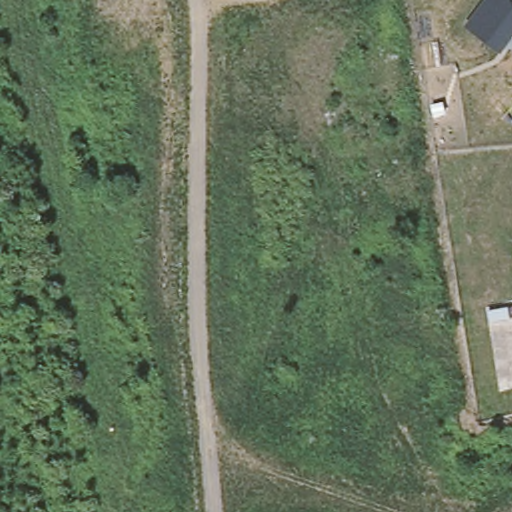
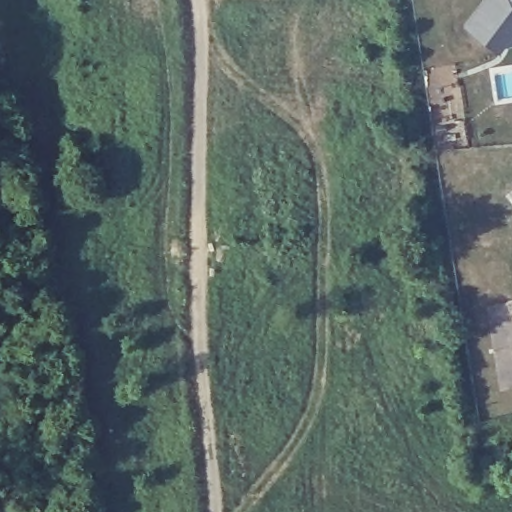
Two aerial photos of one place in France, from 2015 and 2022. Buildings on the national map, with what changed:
unchanged [(500,53),(462,26),(482,0),(512,0),(512,38),(500,53)]

